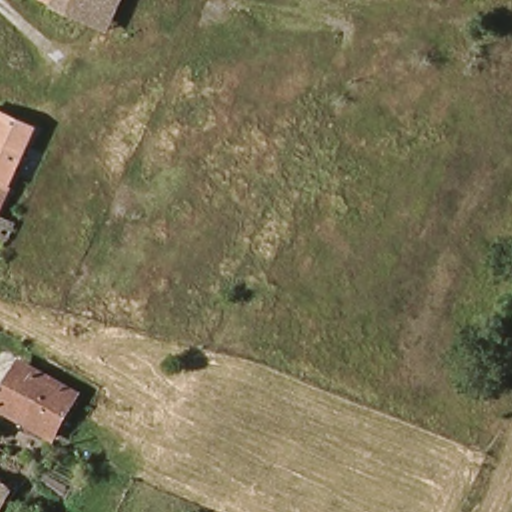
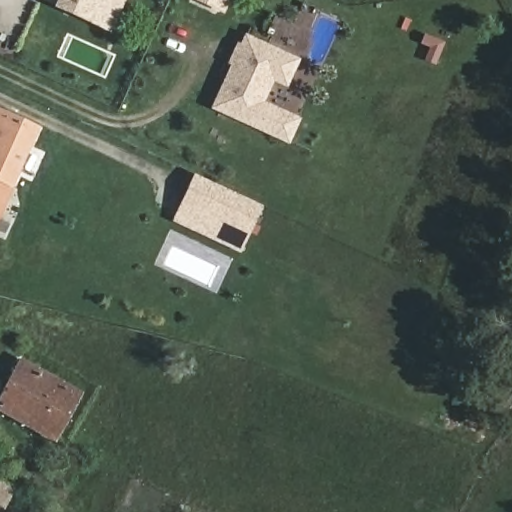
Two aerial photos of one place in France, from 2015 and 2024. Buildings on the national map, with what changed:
unchanged [(56,9),(42,3),(37,0),(125,0),(120,14),(111,31),(87,22),(56,9)]
new [(195,0),(231,0),(224,14),(195,0)]
new [(289,145),(212,109),(232,65),(227,64),(237,43),(241,44),(246,35),(301,58),(287,88),(273,81),(265,101),(301,118),(289,145)]
unchanged [(0,218),(0,114),(37,131),(0,218)]
new [(174,222),(194,175),(262,206),(242,253),(174,222)]
unchanged [(26,371),(73,397),(50,441),(0,415),(0,400),(5,391),(12,396),(26,371)]
unchanged [(0,488),(11,494),(1,512),(0,512),(0,488)]

